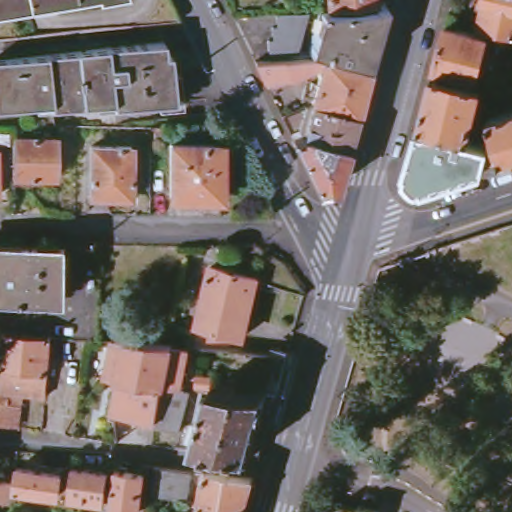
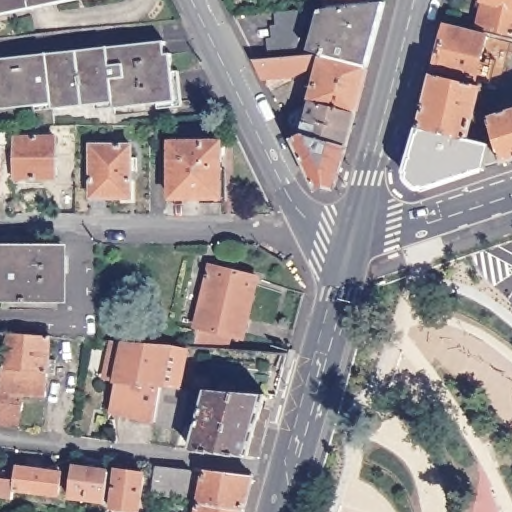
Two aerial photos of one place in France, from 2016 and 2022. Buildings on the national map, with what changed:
unchanged [(0,16),(0,0),(72,0),(0,16)]
unchanged [(373,4),(327,7),(326,0),(373,0),(373,4)]
unchanged [(478,26),(480,20),(474,18),(478,0),(512,0),(512,35),(478,26)]
unchanged [(327,11),(327,7),(373,4),(383,3),(367,65),(319,55),(309,52),(316,27),(309,24),(302,26),(296,52),(270,54),(267,40),(272,39),(271,27),(277,26),(275,13),(327,11)]
unchanged [(488,34),(506,39),(504,50),(495,47),(493,59),(483,56),(477,82),(434,72),(446,27),(447,24),(488,34)]
unchanged [(167,41),(169,55),(174,55),(178,104),(116,109),(117,104),(56,110),(57,103),(0,108),(0,56),(167,41)]
unchanged [(367,65),(356,113),(312,102),(321,65),(306,69),(292,75),(293,82),(270,91),(254,59),(319,55),(367,65)]
unchanged [(481,88),(468,142),(420,130),(433,77),(481,88)]
unchanged [(356,113),(338,187),(317,187),(282,115),(312,102),(356,113)]
unchanged [(502,165),(497,146),(488,119),(512,110),(512,161),(502,165)]
unchanged [(489,147),(497,146),(502,165),(425,190),(416,180),(406,173),(420,130),(468,142),(489,147)]
unchanged [(57,137),(56,180),(15,178),(17,136),(57,137)]
unchanged [(134,146),(133,198),(90,197),(91,146),(134,146)]
unchanged [(223,147),(223,197),(171,197),(171,147),(223,147)]
unchanged [(66,249),(67,297),(32,297),(32,302),(26,302),(25,298),(0,298),(0,250),(66,249)]
unchanged [(263,277),(248,337),(235,334),(230,349),(195,347),(216,266),(263,277)]
unchanged [(21,394),(17,427),(0,425),(0,363),(2,342),(0,341),(0,336),(3,337),(3,333),(50,337),(46,396),(21,394)]
unchanged [(184,452),(189,434),(166,427),(167,423),(121,415),(127,384),(114,382),(121,346),(133,347),(181,350),(181,351),(174,390),(275,399),(258,462),(202,455),(195,454),(184,452)]
unchanged [(17,473),(18,466),(31,468),(32,462),(63,467),(59,496),(15,489),(15,485),(16,476),(17,473)]
unchanged [(108,501),(105,512),(94,512),(96,500),(66,496),(71,466),(72,466),(109,471),(103,501),(108,501)]
unchanged [(151,493),(157,466),(191,470),(185,499),(151,493)]
unchanged [(145,472),(137,509),(113,506),(111,512),(105,512),(108,501),(114,470),(145,472)]
unchanged [(17,473),(16,476),(15,485),(15,489),(14,497),(14,499),(0,497),(0,471),(17,473)]
unchanged [(198,476),(201,471),(254,477),(245,508),(198,501),(204,477),(198,476)]
unchanged [(245,508),(244,512),(195,512),(198,501),(245,508)]
unchanged [(355,510),(363,507),(380,512),(339,512),(341,506),(355,510)]

